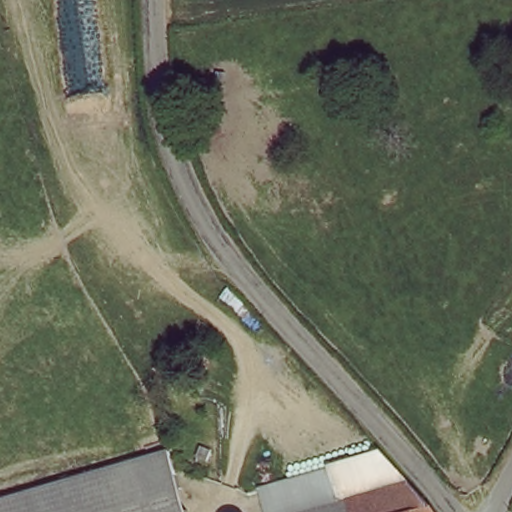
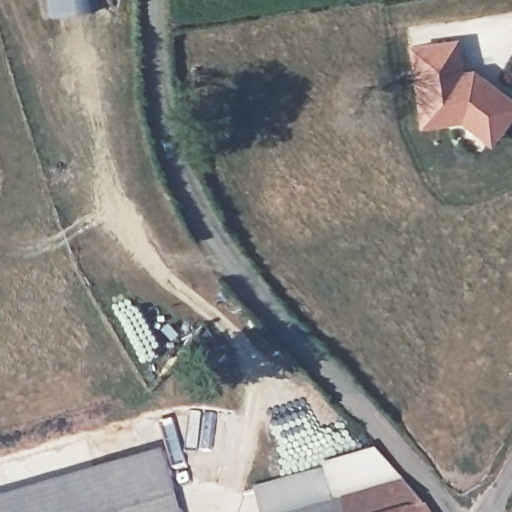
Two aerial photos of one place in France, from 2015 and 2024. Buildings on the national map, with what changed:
new [(52,15),(49,0),(93,0),(94,8),(52,15)]
new [(418,125),(408,44),(456,38),(461,69),(472,68),(512,98),(512,113),(489,143),(459,120),(418,125)]
unchanged [(0,512),(0,501),(167,452),(186,512),(0,512)]
unchanged [(395,512),(368,512),(360,485),(392,473),(416,504),(395,512)]
unchanged [(368,512),(282,512),(360,485),(368,512)]
unchanged [(422,512),(395,512),(416,504),(422,512)]

